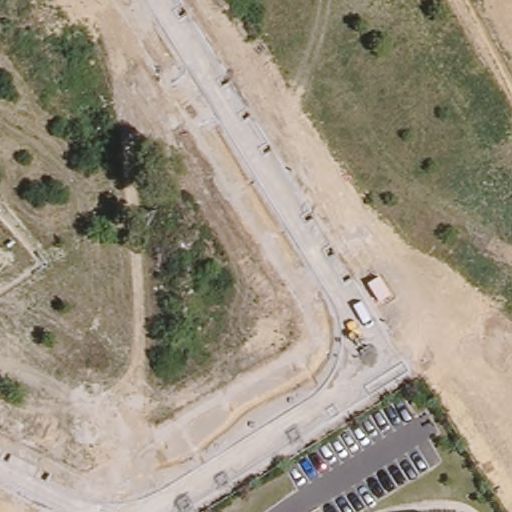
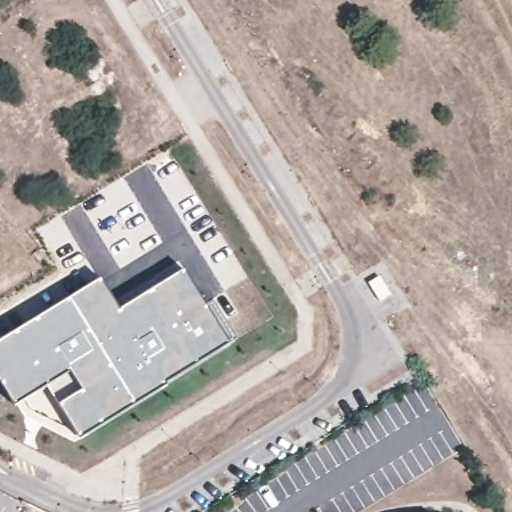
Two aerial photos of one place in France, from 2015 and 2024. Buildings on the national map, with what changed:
new [(102,280),(121,310),(186,271),(232,344),(81,440),(49,387),(16,406),(0,381),(0,340),(102,280)]

